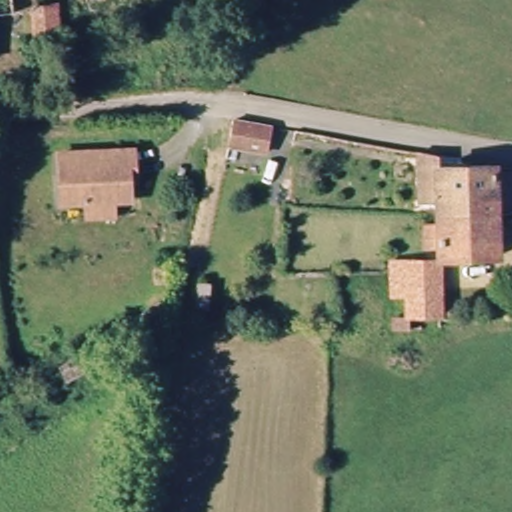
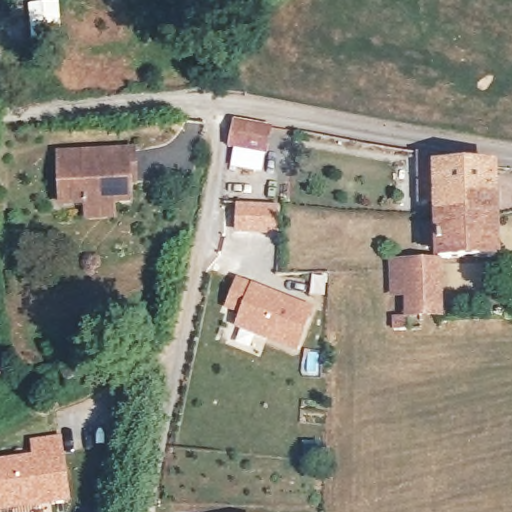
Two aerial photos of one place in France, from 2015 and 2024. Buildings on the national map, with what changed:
unchanged [(0,30),(0,0),(11,0),(14,28),(0,30)]
unchanged [(70,24),(69,60),(44,57),(46,23),(70,24)]
new [(272,126),(267,154),(229,146),(234,119),(272,126)]
demolished [(263,182),(225,176),(233,131),(269,136),(263,182)]
unchanged [(60,156),(133,154),(135,204),(62,205),(60,156)]
unchanged [(482,202),(471,206),(472,225),(442,225),(442,211),(428,212),(425,159),(439,160),(441,171),(499,172),(502,221),(486,222),(482,202)]
unchanged [(472,225),(471,206),(482,202),(486,222),(502,221),(504,259),(447,263),(445,255),(432,255),(433,233),(443,231),(442,225),(472,225)]
unchanged [(401,275),(400,271),(447,270),(451,319),(419,320),(420,332),(401,332),(401,275)]
new [(315,308),(296,352),(234,327),(239,313),(225,307),(239,276),(315,308)]
new [(29,439),(62,436),(71,501),(0,512),(0,458),(30,453),(29,439)]

